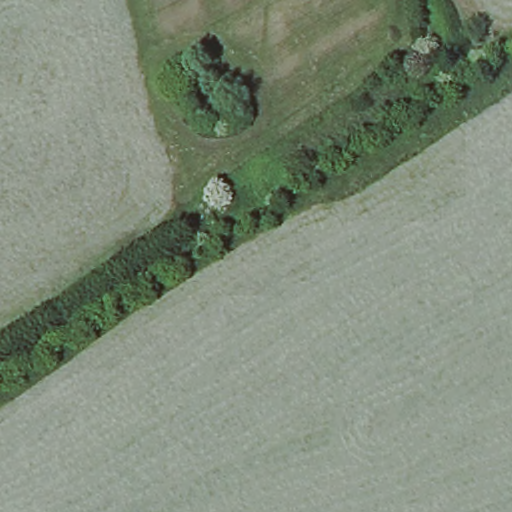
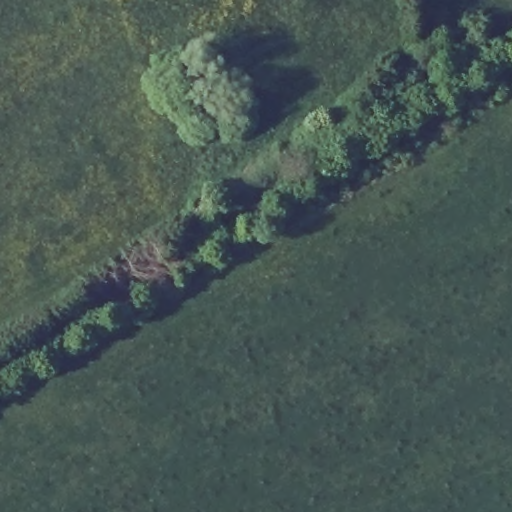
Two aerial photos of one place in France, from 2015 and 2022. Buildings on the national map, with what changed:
[]

